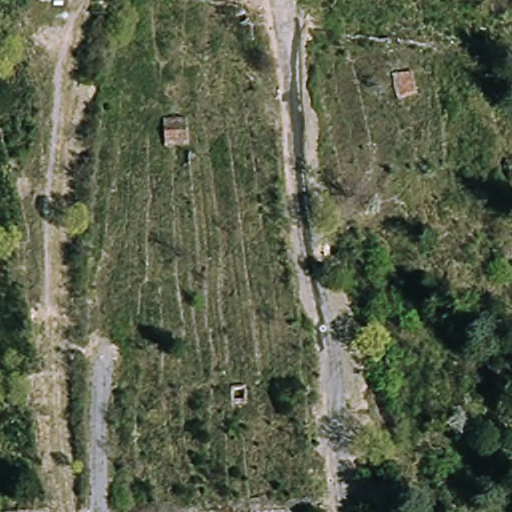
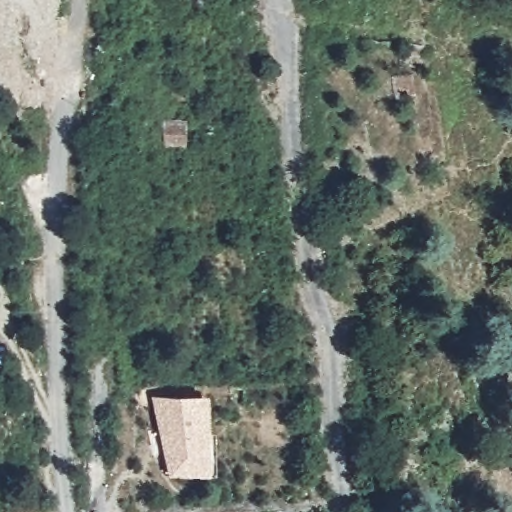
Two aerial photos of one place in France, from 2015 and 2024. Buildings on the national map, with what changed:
unchanged [(420,75),(421,99),(404,101),(402,75),(420,75)]
unchanged [(192,126),(193,149),(166,150),(166,127),(192,126)]
new [(170,475),(151,394),(211,393),(212,474),(170,475)]

